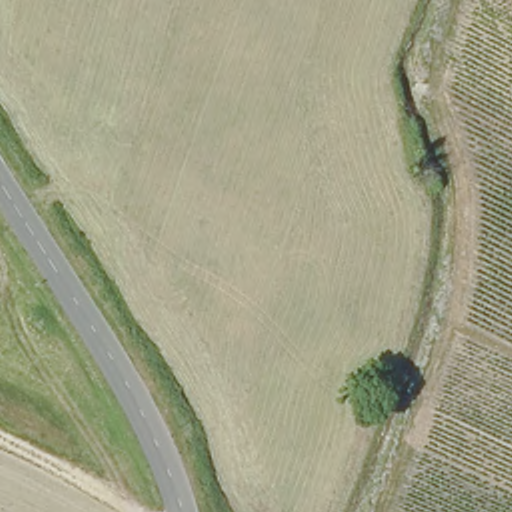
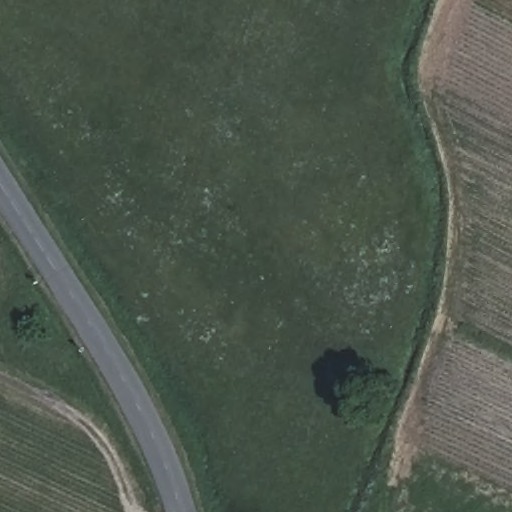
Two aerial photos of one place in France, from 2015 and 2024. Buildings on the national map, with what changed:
[]

